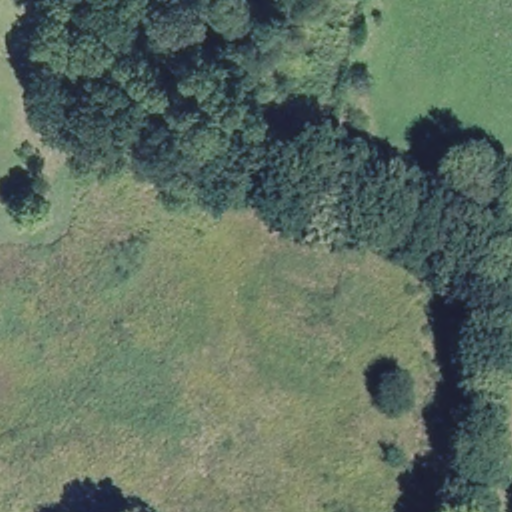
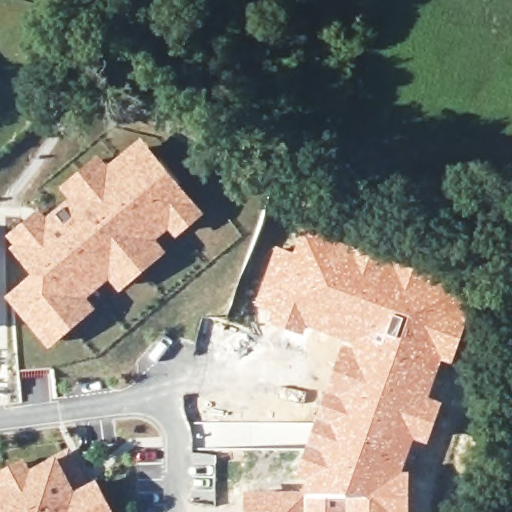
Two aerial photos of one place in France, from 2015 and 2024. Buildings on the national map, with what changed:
new [(31,272),(9,246),(12,244),(5,236),(40,207),(46,215),(68,197),(59,186),(98,153),(107,162),(140,136),(204,212),(175,237),(168,230),(157,239),(167,251),(119,291),(109,280),(89,297),(97,307),(49,347),(5,296),(31,272)]
new [(270,479),(279,478),(281,447),(248,447),(248,422),(310,421),(310,418),(316,407),(324,388),(341,340),(306,327),(303,335),(254,317),(257,307),(253,305),(275,246),(291,251),(308,225),(333,230),(378,247),(418,267),(465,296),(460,308),(470,312),(452,362),(442,359),(429,396),(442,401),(427,443),(415,440),(404,468),(410,469),(410,512),(245,512),(243,490),(271,488),(270,479)]
new [(452,432),(477,437),(474,451),(478,452),(471,478),(442,465),(452,432)]
new [(24,457),(30,467),(57,452),(75,488),(96,477),(114,512),(0,512),(0,469),(24,457)]

